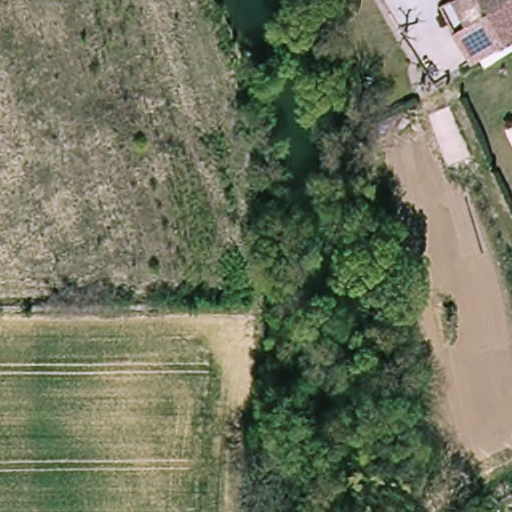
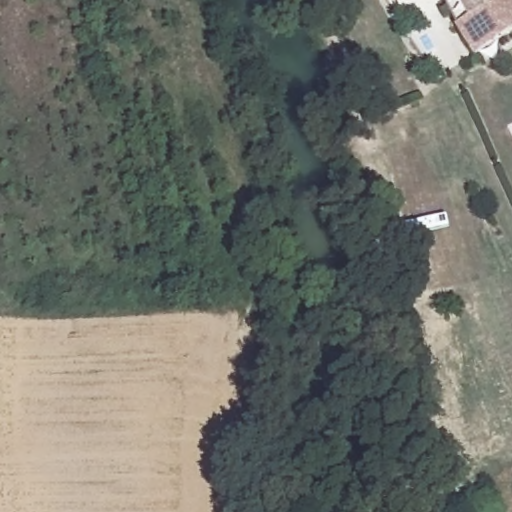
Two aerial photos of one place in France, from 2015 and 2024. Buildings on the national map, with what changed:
unchanged [(468,60),(434,4),(439,0),(512,0),(512,32),(468,60)]

